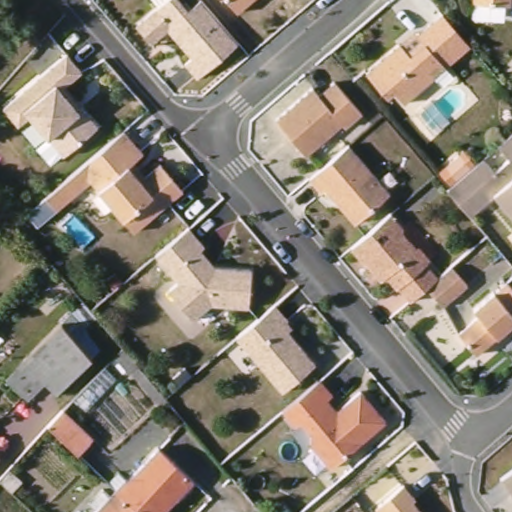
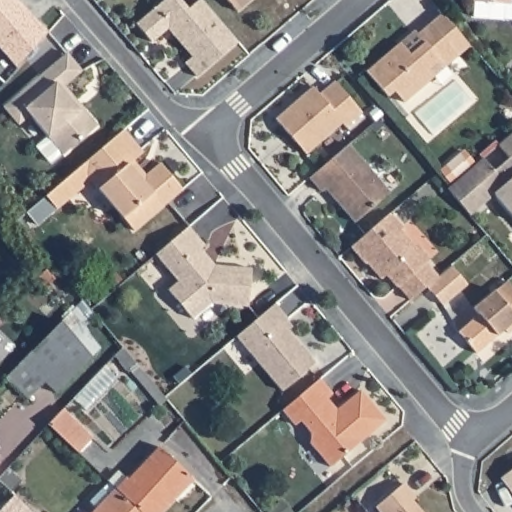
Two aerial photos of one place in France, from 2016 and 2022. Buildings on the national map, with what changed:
new [(0,48),(0,0),(19,0),(47,32),(18,68),(0,48)]
unchanged [(237,42),(199,75),(187,61),(194,55),(170,27),(152,42),(136,24),(164,0),(180,0),(188,9),(199,0),(201,0),(237,42)]
unchanged [(242,7),(236,0),(250,0),(242,7)]
unchanged [(463,50),(449,62),(443,56),(431,67),(437,73),(408,98),(398,86),(392,92),(370,67),(403,38),(414,50),(427,38),(421,30),(435,17),(463,50)]
unchanged [(67,155),(34,116),(22,125),(7,108),(71,54),(86,71),(68,86),(86,107),(102,126),(67,155)]
unchanged [(317,82),(323,90),(339,77),(367,108),(350,122),(347,118),(311,150),(280,114),(317,82)]
unchanged [(50,191),(86,160),(117,134),(128,125),(147,148),(133,160),(146,174),(165,158),(187,185),(139,226),(96,175),(61,204),(50,191)]
unchanged [(512,131),(512,151),(502,140),(512,131)]
unchanged [(395,187),(360,217),(330,183),(326,186),(314,173),(322,166),(353,139),(395,187)]
unchanged [(474,210),(451,184),(462,174),(453,162),(466,152),(475,163),(487,153),(498,166),(512,154),(512,205),(498,189),(474,210)]
unchanged [(467,284),(442,305),(426,286),(410,300),(397,286),(397,287),(386,275),(381,279),(367,263),(366,264),(351,247),(390,213),(403,228),(401,230),(417,249),(419,246),(430,258),(426,262),(437,276),(451,265),(467,284)]
unchanged [(209,241),(205,244),(219,261),(256,264),(252,301),(215,298),(197,314),(172,285),(182,276),(160,250),(160,249),(192,222),(193,222),(209,241)]
unchanged [(478,303),(499,286),(500,287),(512,277),(512,278),(512,327),(510,324),(482,349),(463,328),(484,310),(478,303)]
unchanged [(290,316),(296,322),(291,326),(317,357),(284,384),(240,332),(278,300),(291,315),(290,316)]
unchanged [(56,395),(45,383),(27,399),(6,378),(61,321),(75,338),(91,357),(56,395)]
unchanged [(127,373),(113,356),(121,347),(136,365),(127,373)]
unchanged [(335,462),(315,438),(316,427),(306,415),(300,420),(287,405),(325,374),(337,388),(328,396),(338,407),(365,385),(391,415),(335,462)]
unchanged [(92,439),(77,454),(64,440),(47,425),(63,409),(92,439)]
unchanged [(127,479),(157,447),(193,480),(162,512),(139,512),(124,497),(115,489),(114,488),(125,477),(127,479)]
unchanged [(22,481),(11,492),(0,482),(0,477),(8,468),(22,481)]
unchanged [(512,470),(512,494),(501,479),(512,470)]
unchanged [(403,483),(415,496),(412,499),(422,512),(381,512),(376,505),(403,483)]
unchanged [(90,502),(102,489),(110,496),(115,489),(124,497),(139,512),(94,512),(97,509),(90,502)]

